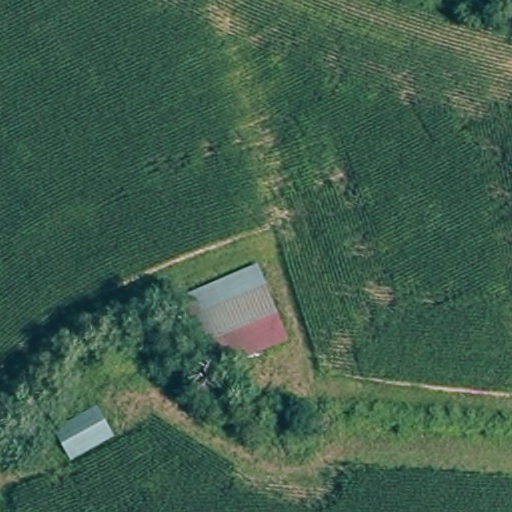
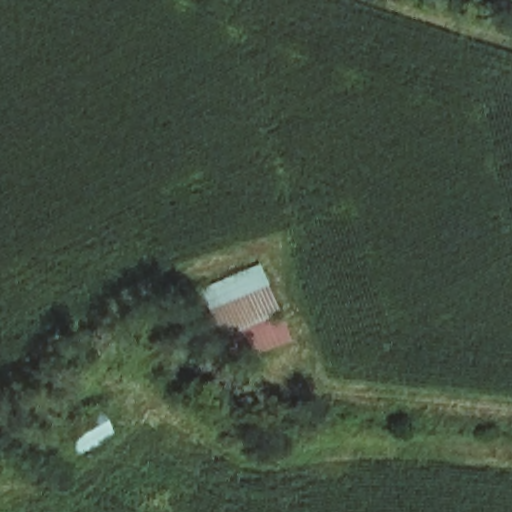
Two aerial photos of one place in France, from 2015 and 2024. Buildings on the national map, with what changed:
unchanged [(257,266),(285,343),(201,376),(169,301),(257,266)]
unchanged [(99,407),(112,436),(67,460),(50,429),(99,407)]

